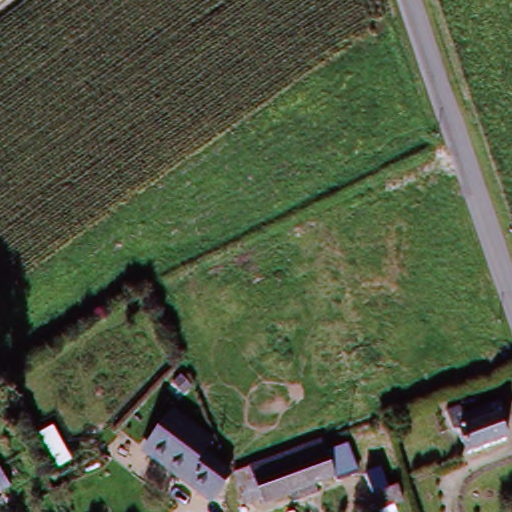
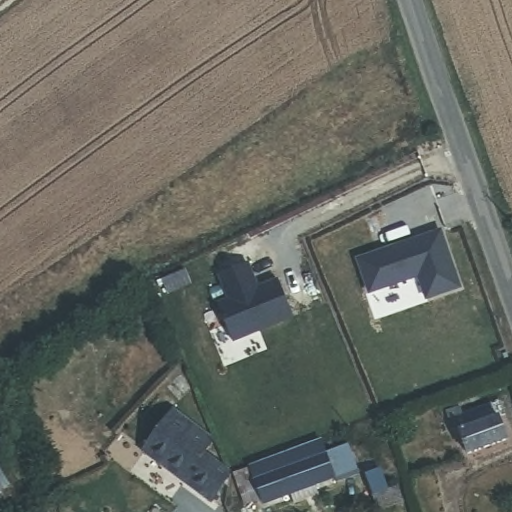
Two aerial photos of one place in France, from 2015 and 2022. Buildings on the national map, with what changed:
new [(440,228),(463,288),(426,300),(418,278),(369,294),(354,257),(440,228)]
new [(294,316),(232,343),(216,303),(227,299),(217,275),(249,263),(259,286),(278,277),(294,316)]
unchanged [(468,458),(457,429),(452,413),(494,398),(499,413),(511,444),(468,458)]
unchanged [(220,494),(155,457),(159,453),(144,444),(155,422),(170,430),(175,421),(214,443),(204,459),(232,474),(220,494)]
unchanged [(285,480),(277,456),(319,441),(328,464),(285,480)]
unchanged [(271,512),(261,512),(257,501),(238,503),(238,471),(244,468),(260,462),(277,456),(285,480),(328,464),(353,454),(361,476),(327,490),(331,503),(314,510),(308,512),(303,512),(299,501),(279,509),(271,512)]
unchanged [(0,486),(0,471),(6,482),(0,486)]
unchanged [(373,485),(388,481),(394,504),(397,512),(381,512),(379,508),(373,485)]

